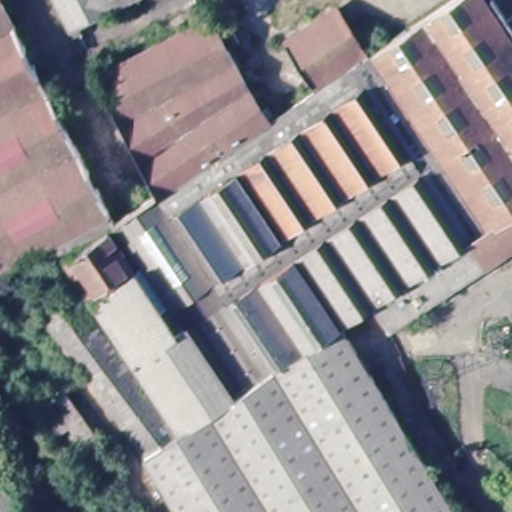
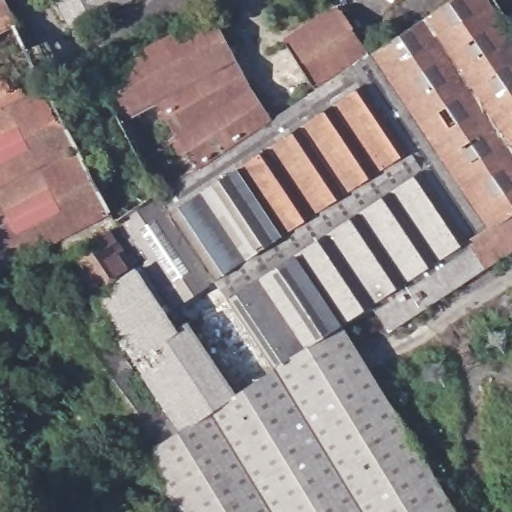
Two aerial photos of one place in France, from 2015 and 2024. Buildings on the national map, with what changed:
unchanged [(0,265),(0,0),(5,0),(111,209),(0,265)]
unchanged [(79,33),(76,27),(72,29),(57,0),(143,0),(79,33)]
unchanged [(365,60),(373,55),(459,0),(483,0),(512,41),(512,213),(466,241),(352,67),(365,60)]
unchanged [(286,45),(338,11),(366,54),(322,82),(315,87),(286,45)]
unchanged [(155,195),(95,75),(217,12),(226,29),(219,32),(265,123),(155,195)]
unchanged [(493,266),(397,328),(392,331),(372,308),(342,326),(237,396),(146,455),(141,450),(135,445),(35,319),(76,284),(64,262),(118,229),(156,196),(273,120),(313,90),(352,67),(466,241),(512,213),(512,254),(493,266)]
unchanged [(459,512),(180,512),(146,455),(237,396),(342,326),(356,348),(459,512)]
unchanged [(99,485),(98,485),(99,484),(100,482),(74,446),(43,405),(55,396),(107,469),(105,472),(110,476),(99,485)]

